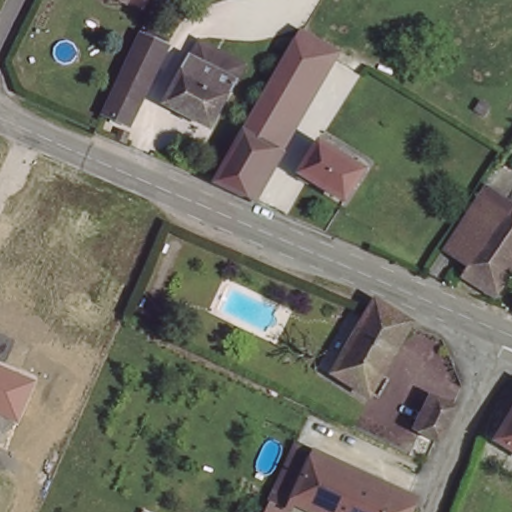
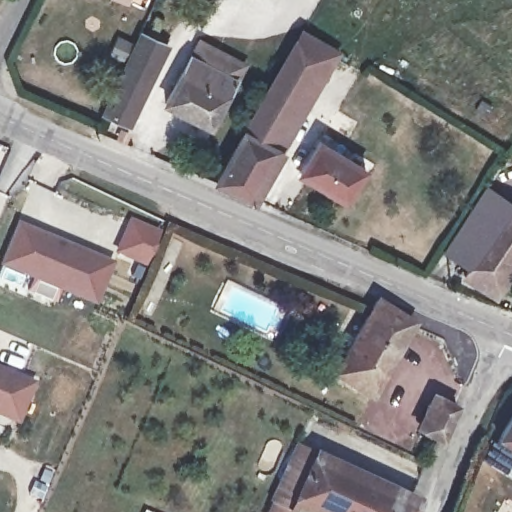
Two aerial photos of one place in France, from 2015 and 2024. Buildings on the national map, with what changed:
unchanged [(116,0),(125,0),(124,4),(116,0)]
unchanged [(148,28),(172,40),(154,77),(129,65),(148,28)]
unchanged [(273,89),(301,40),(334,58),(293,133),(259,113),(273,89)]
unchanged [(162,108),(186,56),(238,83),(214,133),(162,108)]
unchanged [(98,126),(129,65),(154,77),(125,137),(98,126)]
unchanged [(293,133),(252,205),(214,188),(259,113),(293,133)]
unchanged [(367,169),(347,208),(299,184),(320,144),(367,169)]
unchanged [(443,255),(490,187),(512,202),(512,211),(469,268),(443,255)]
unchanged [(459,284),(469,268),(512,211),(512,262),(483,298),(459,284)]
new [(128,217),(162,230),(147,265),(114,251),(128,217)]
new [(17,222),(44,234),(105,260),(91,295),(2,257),(14,229),(17,222)]
unchanged [(367,397),(333,379),(376,300),(413,320),(367,397)]
unchanged [(35,381),(20,420),(0,413),(0,366),(35,381)]
unchanged [(432,404),(449,411),(438,438),(421,431),(432,404)]
unchanged [(512,413),(512,452),(499,447),(512,413)]
unchanged [(434,499),(429,512),(307,512),(301,509),(299,512),(277,512),(307,445),(326,454),(324,459),(434,499)]
unchanged [(161,512),(144,512),(147,506),(161,512)]

